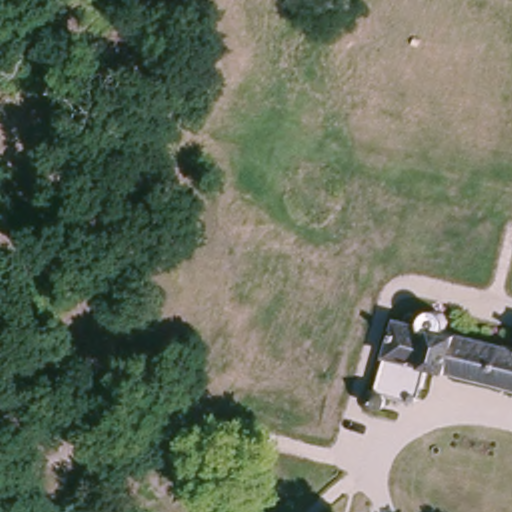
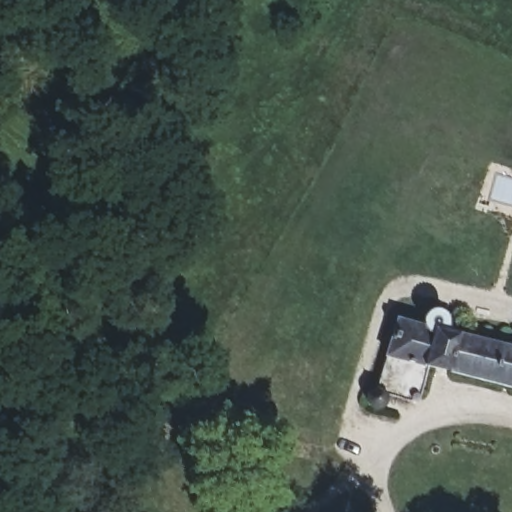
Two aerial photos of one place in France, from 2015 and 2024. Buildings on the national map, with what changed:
unchanged [(419,396),(419,397),(418,398),(417,399),(416,400),(415,400),(414,401),(412,401),(410,401),(385,395),(383,401),(383,402),(381,405),(379,406),(377,407),(374,407),(371,406),(369,404),(368,402),(367,400),(367,397),(368,395),(370,392),(372,391),(375,391),(379,391),(398,319),(422,326),(423,322),(424,319),(426,316),(430,313),(434,312),(438,311),(442,312),(446,315),(448,318),(450,322),(450,326),(448,332),(506,347),(507,345),(512,346),(512,389),(449,372),(427,367),(420,395),(419,396)]

